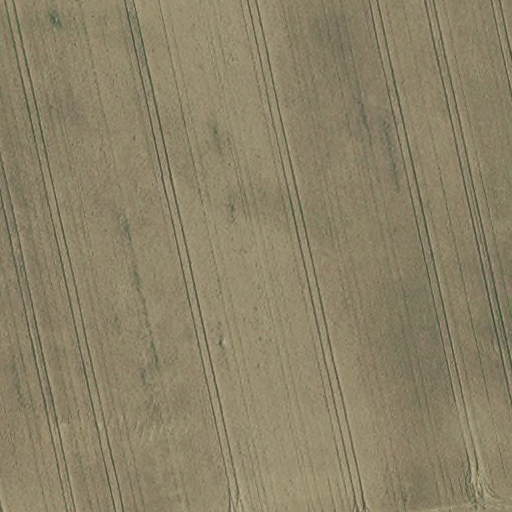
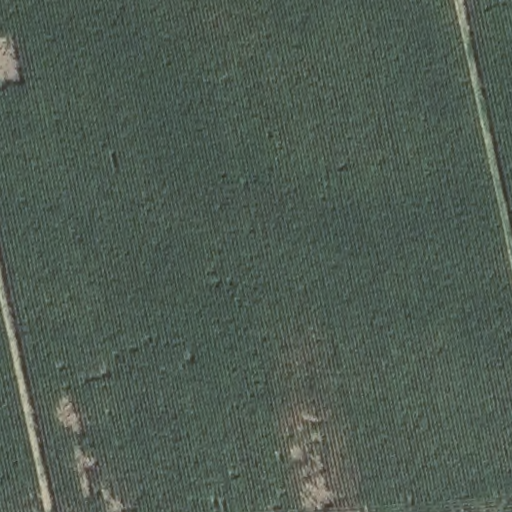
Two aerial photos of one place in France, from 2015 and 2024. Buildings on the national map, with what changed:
[]

